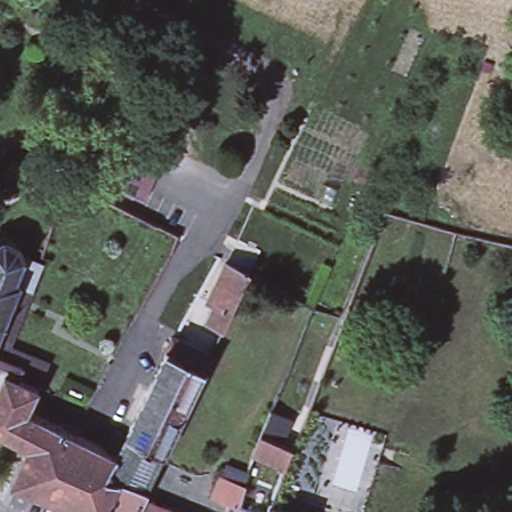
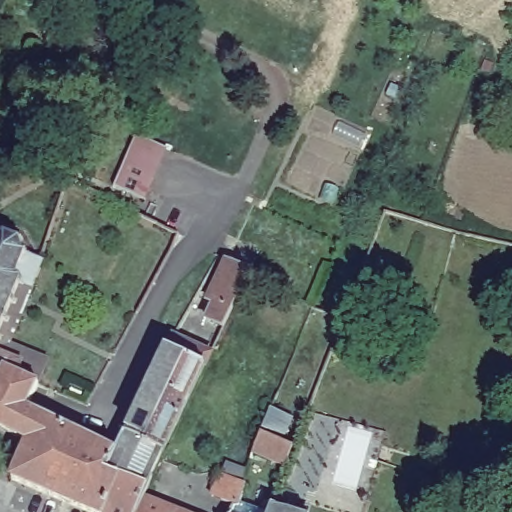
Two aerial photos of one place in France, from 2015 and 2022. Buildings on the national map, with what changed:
unchanged [(136,140),(164,152),(141,205),(113,193),(136,140)]
unchanged [(27,443),(0,428),(0,373),(5,364),(1,362),(0,362),(0,237),(2,236),(2,230),(6,230),(6,236),(15,240),(20,235),(23,240),(17,244),(24,254),(29,253),(29,257),(37,259),(42,261),(32,285),(8,345),(46,361),(26,407),(106,447),(115,430),(125,435),(172,336),(210,354),(143,498),(136,512),(88,512),(12,480),(27,443)]
unchanged [(206,320),(214,304),(207,301),(227,261),(248,273),(222,328),(206,320)]
unchanged [(253,453),(261,433),(271,409),(292,418),(282,442),(294,447),(313,455),(295,501),(276,493),(286,467),(253,453)]
unchanged [(210,487),(220,464),(243,473),(247,475),(238,498),(233,496),(210,487)]
unchanged [(179,512),(136,512),(143,498),(179,512)]
unchanged [(294,512),(269,512),(272,504),(294,512)]

